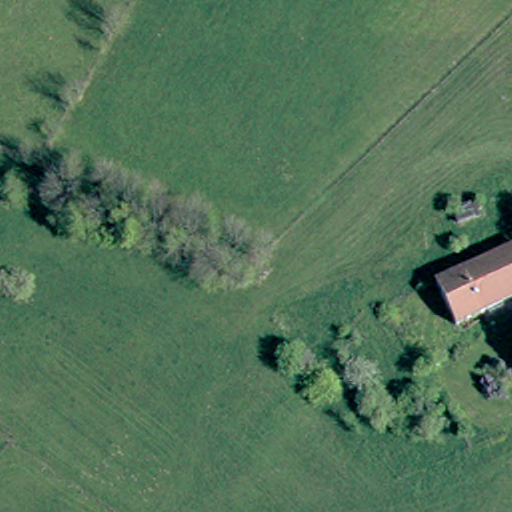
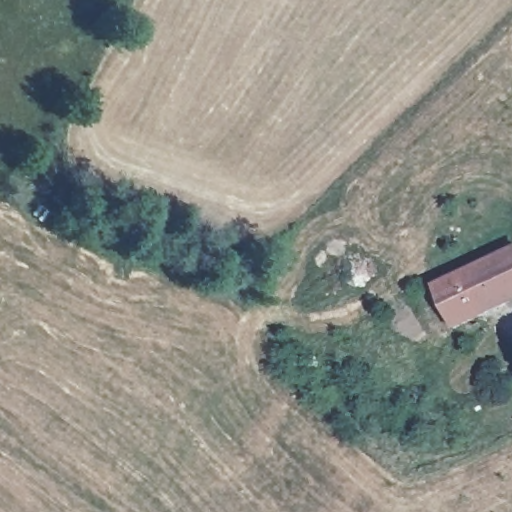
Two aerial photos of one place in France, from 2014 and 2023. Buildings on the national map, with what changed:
unchanged [(455,324),(433,284),(512,244),(512,297),(455,324)]

